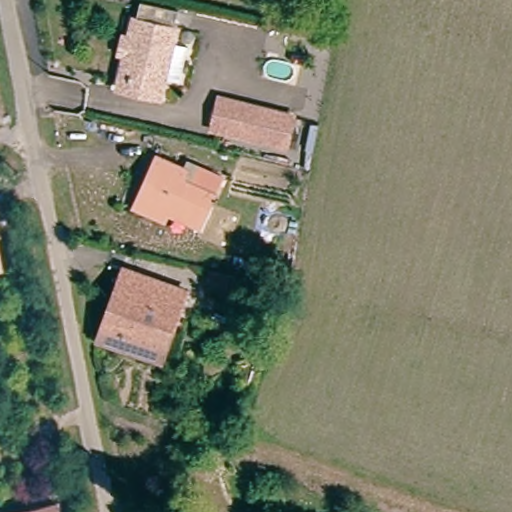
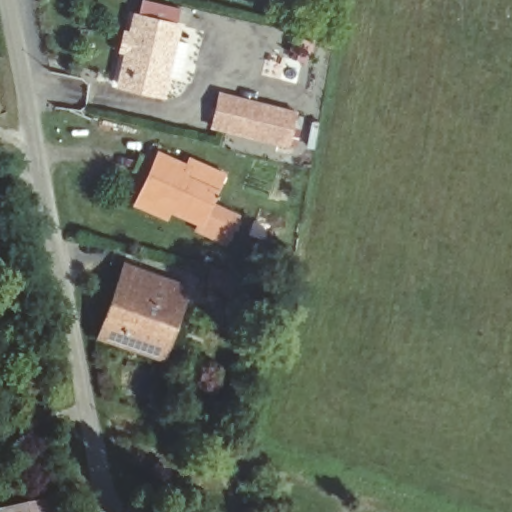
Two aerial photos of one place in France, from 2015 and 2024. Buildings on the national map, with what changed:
unchanged [(119,72),(123,54),(116,52),(117,36),(128,37),(131,15),(175,24),(162,94),(132,89),(116,85),(119,72)]
unchanged [(212,128),(219,100),(288,114),(295,116),(289,144),(284,143),(212,128)]
unchanged [(132,215),(136,202),(159,154),(186,162),(201,166),(223,172),(201,223),(169,212),(163,224),(132,215)]
unchanged [(126,268),(190,288),(162,359),(101,338),(126,268)]
unchanged [(236,269),(259,278),(252,300),(226,293),(236,269)]
unchanged [(57,512),(3,512),(2,512),(55,502),(57,512)]

